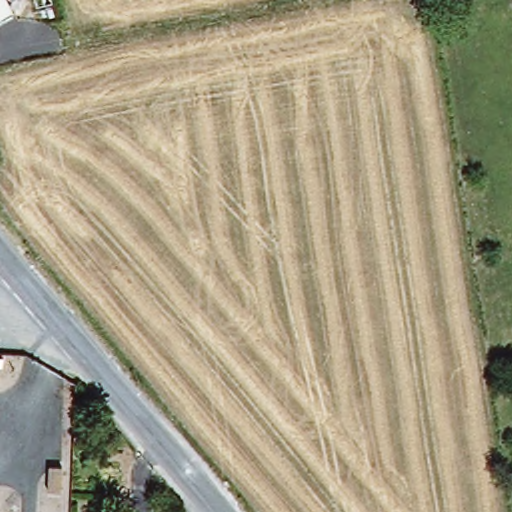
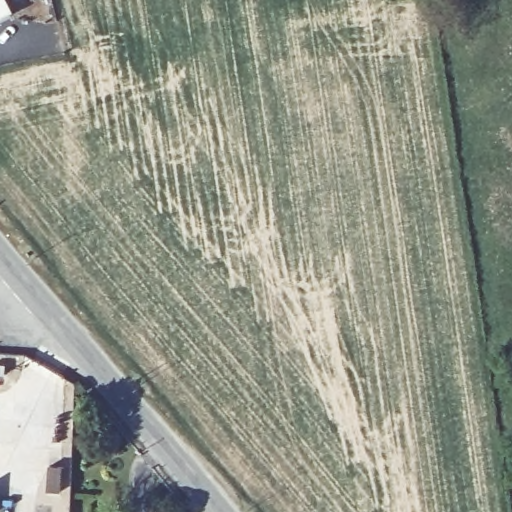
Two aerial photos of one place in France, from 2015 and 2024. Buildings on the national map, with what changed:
unchanged [(16,9),(0,18),(0,0),(11,0),(16,9)]

